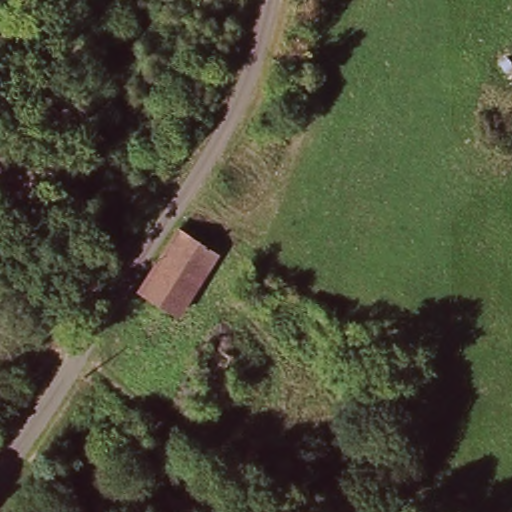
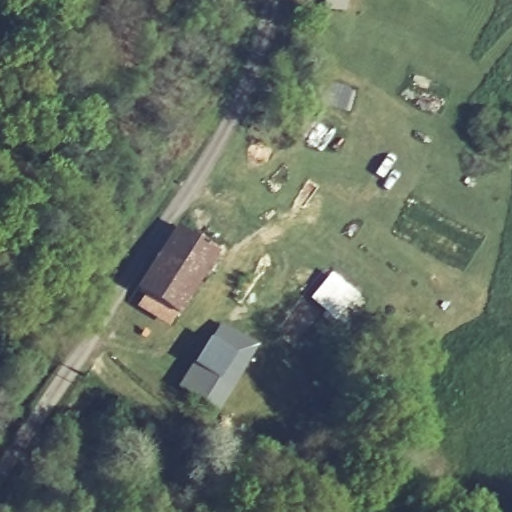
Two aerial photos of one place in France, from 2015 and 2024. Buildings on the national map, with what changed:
unchanged [(205,239),(221,250),(178,315),(139,288),(185,225),(205,239)]
new [(309,301),(331,273),(357,296),(336,323),(309,301)]
new [(258,348),(218,415),(177,389),(193,366),(210,340),(220,325),(258,348)]
demolished [(242,363),(235,372),(242,378),(227,400),(220,410),(206,400),(219,379),(212,374),(227,352),(242,363)]

